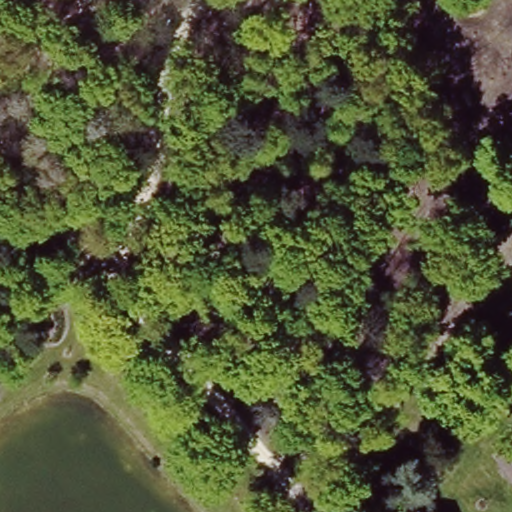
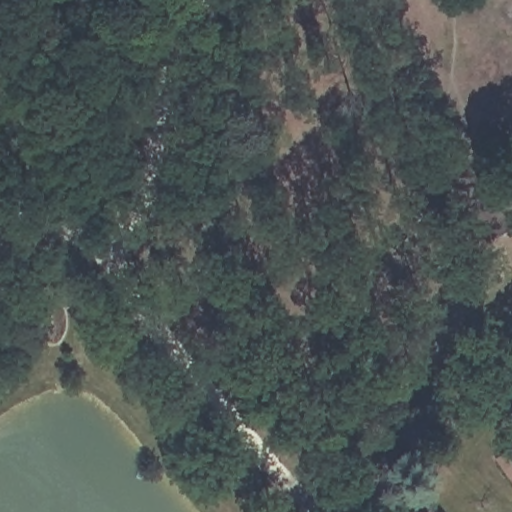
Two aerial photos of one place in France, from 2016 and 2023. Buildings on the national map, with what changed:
unchanged [(512,448),(512,473),(500,457),(512,448)]

